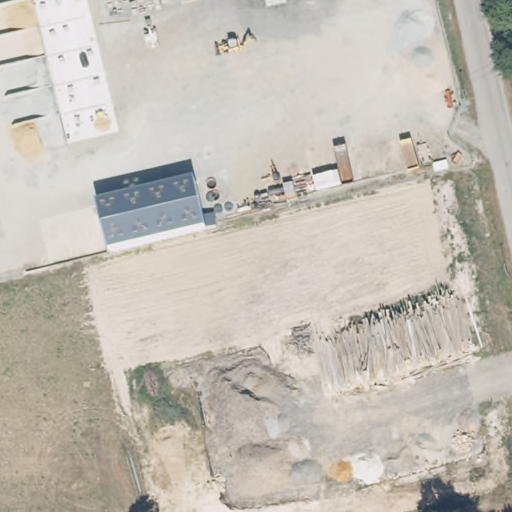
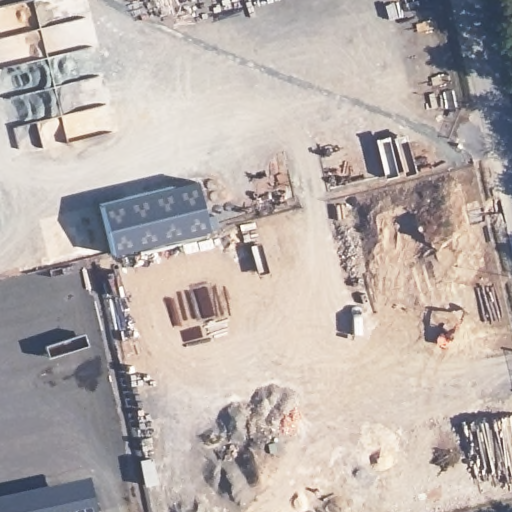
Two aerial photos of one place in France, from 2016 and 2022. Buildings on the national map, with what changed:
unchanged [(110,253),(100,204),(197,181),(208,229),(110,253)]
new [(91,488),(96,512),(0,512),(0,507),(91,488)]

